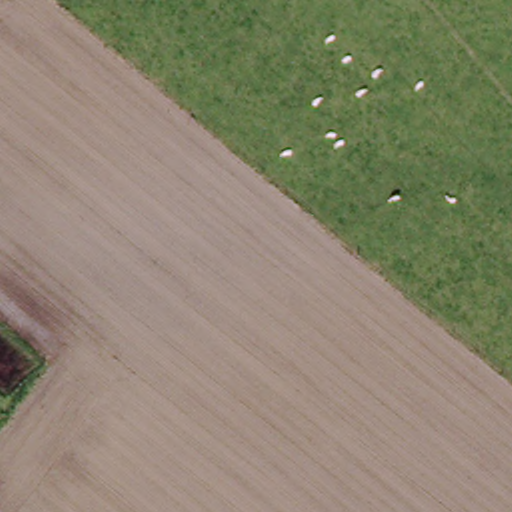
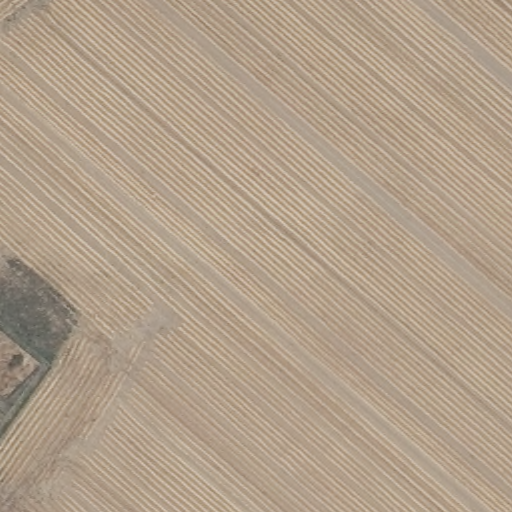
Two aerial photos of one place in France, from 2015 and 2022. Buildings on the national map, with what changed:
[]

